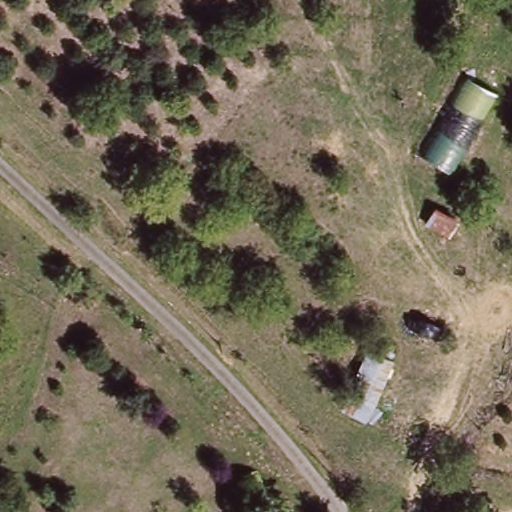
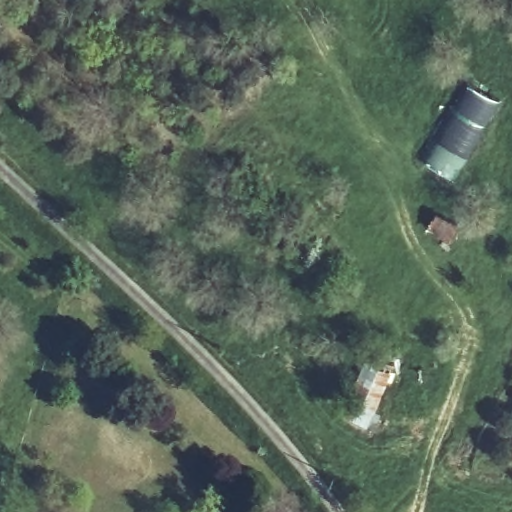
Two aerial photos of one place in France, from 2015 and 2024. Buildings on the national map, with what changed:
unchanged [(466,80),(496,96),(451,174),(420,156),(466,80)]
unchanged [(464,224),(456,238),(431,225),(440,210),(464,224)]
unchanged [(392,363),(373,409),(351,395),(367,350),(392,363)]

